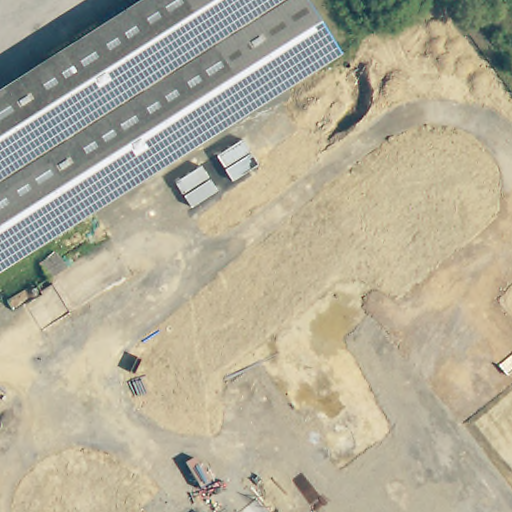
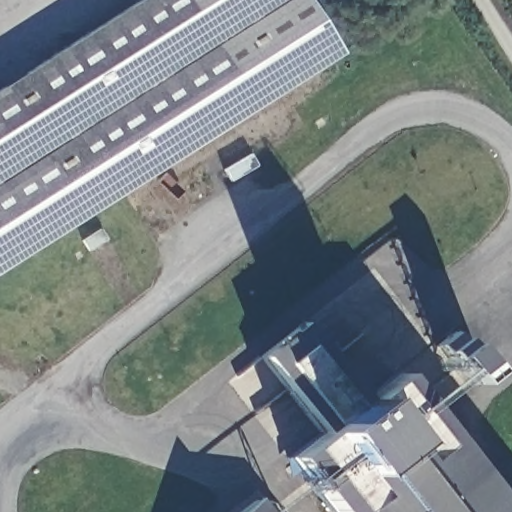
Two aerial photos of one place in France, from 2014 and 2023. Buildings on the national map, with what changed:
unchanged [(314,0),(345,51),(0,268),(0,88),(140,0),(314,0)]
new [(507,512),(333,512),(289,457),(320,431),(261,353),(304,321),(363,396),(397,373),(507,512)]
new [(464,342),(485,372),(468,384),(445,356),(464,342)]
new [(272,512),(242,512),(260,497),(272,512)]

